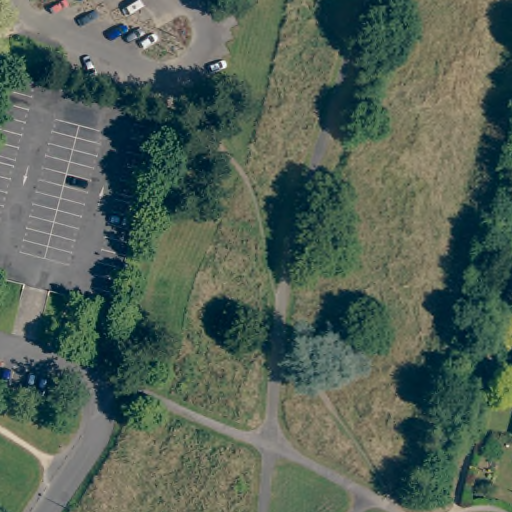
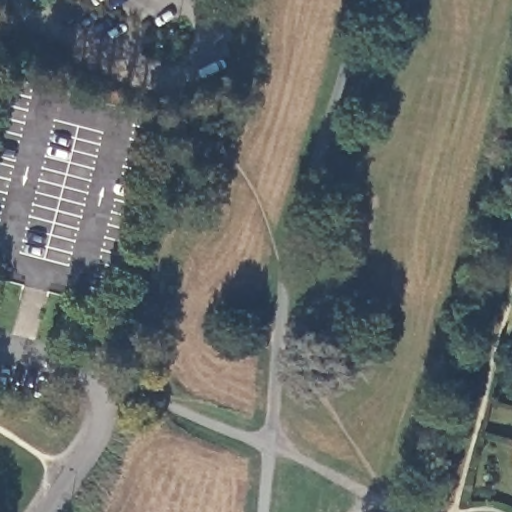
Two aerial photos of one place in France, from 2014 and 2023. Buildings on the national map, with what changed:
unchanged [(144,191),(144,192),(141,203),(135,202),(131,201),(106,302),(101,300),(76,294),(62,290),(47,287),(45,286),(21,280),(4,275),(0,274),(0,100),(7,72),(61,85),(124,101),(155,109),(135,188),(144,191)]

